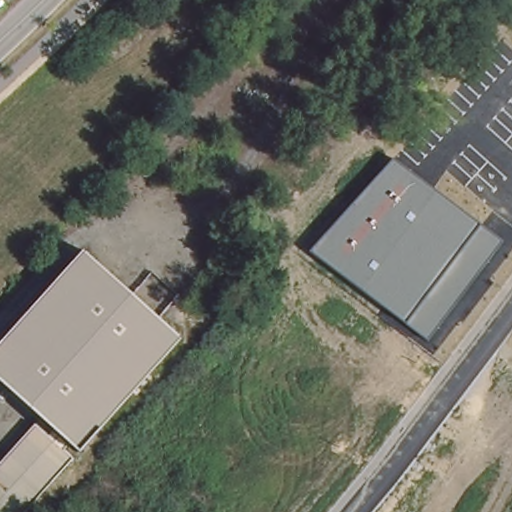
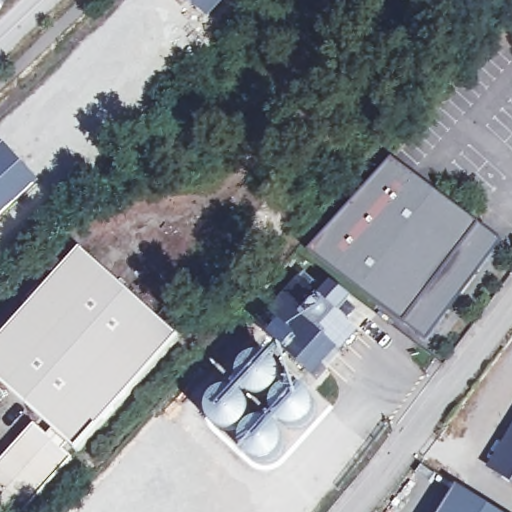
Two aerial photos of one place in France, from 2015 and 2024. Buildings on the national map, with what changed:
new [(209,19),(188,0),(228,0),(209,19)]
new [(5,143),(39,182),(0,217),(0,148),(5,143)]
unchanged [(502,241),(427,339),(311,250),(393,160),(502,241)]
unchanged [(56,428),(0,377),(0,346),(86,250),(183,337),(82,451),(73,443),(68,450),(76,458),(28,512),(1,512),(0,511),(0,470),(25,441),(41,439),(43,442),(56,428)]
new [(298,279),(358,333),(340,353),(315,381),(255,327),(298,279)]
new [(269,356),(273,357),(278,360),(281,366),(284,374),(284,381),(276,396),(266,399),(259,399),(251,397),(249,402),(251,406),(253,412),(252,419),(248,426),(236,434),(228,435),(219,432),(211,425),(208,415),(209,408),(213,400),(219,394),(228,390),(233,390),(239,390),(241,387),(239,379),(241,372),(244,365),(252,359),(259,357),(263,356),(269,356)]
new [(512,429),(512,438),(508,435),(512,429)]
new [(499,465),(512,446),(512,481),(496,471),(499,465)]
new [(499,512),(441,512),(458,486),(499,512)]

